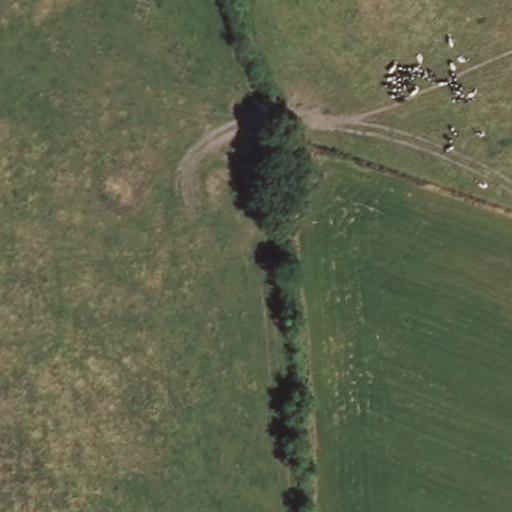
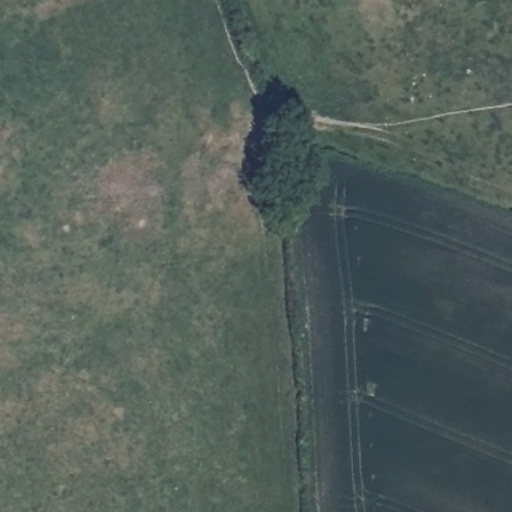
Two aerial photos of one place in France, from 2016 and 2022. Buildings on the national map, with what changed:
[]

